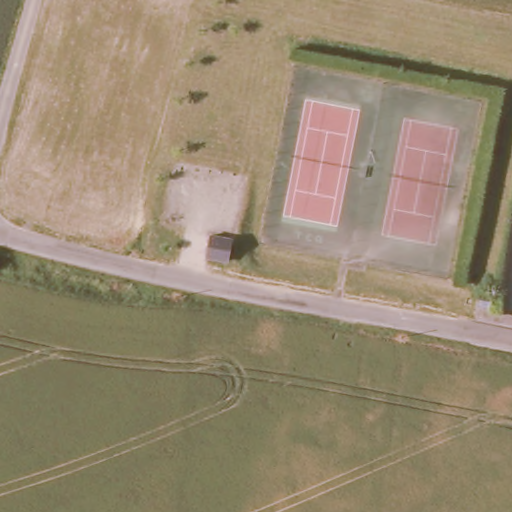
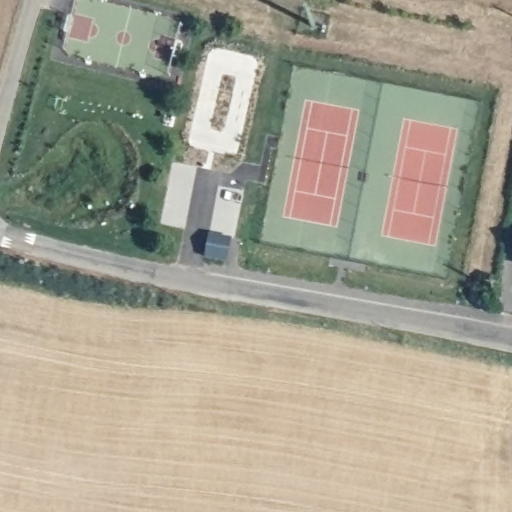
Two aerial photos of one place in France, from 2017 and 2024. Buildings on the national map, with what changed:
unchanged [(210,233),(230,236),(226,258),(207,255),(210,233)]
unchanged [(490,298),(490,305),(477,304),(478,296),(490,298)]

